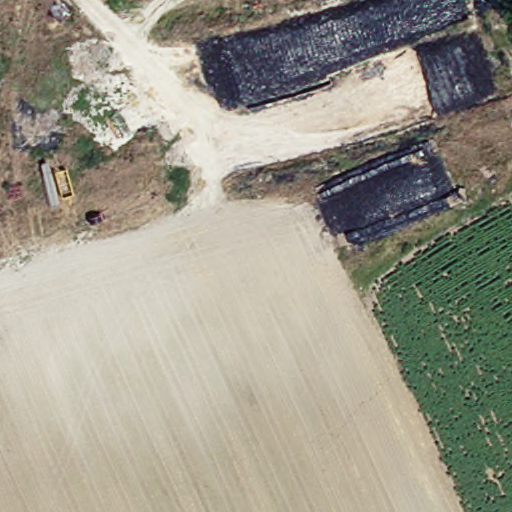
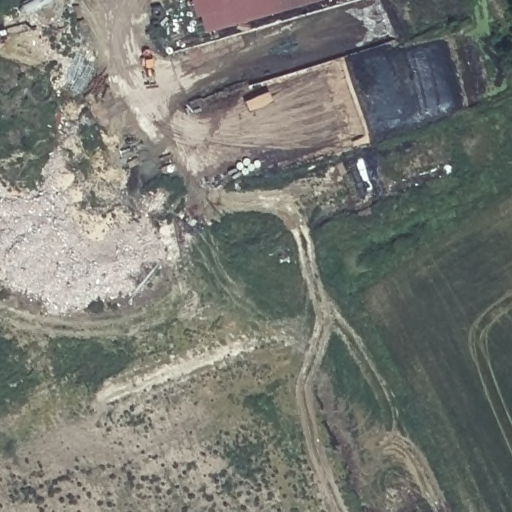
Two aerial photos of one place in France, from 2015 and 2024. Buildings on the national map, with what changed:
new [(276,14),(193,37),(183,0),(272,0),(276,14)]
new [(276,14),(272,0),(327,0),(276,14)]

